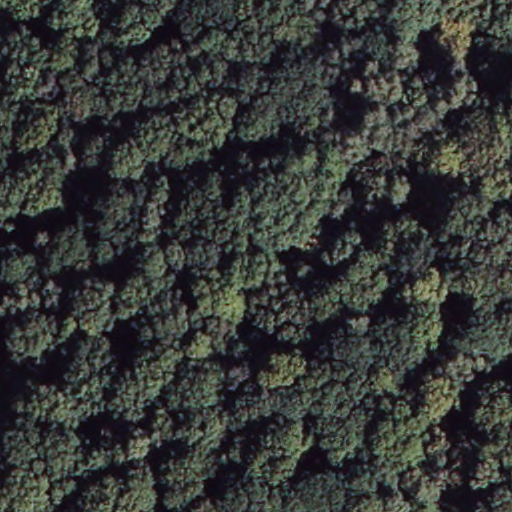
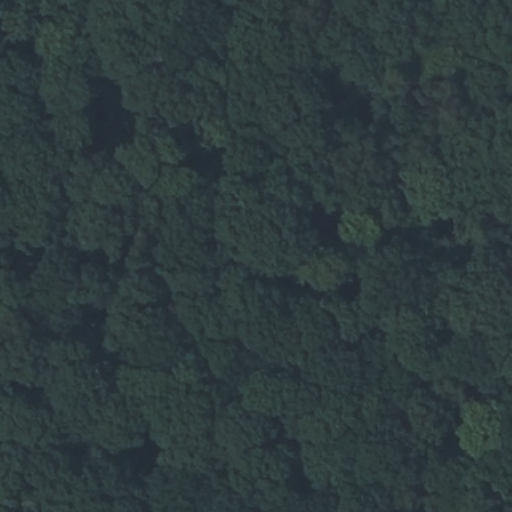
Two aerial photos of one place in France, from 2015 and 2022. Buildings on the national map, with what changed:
[]

